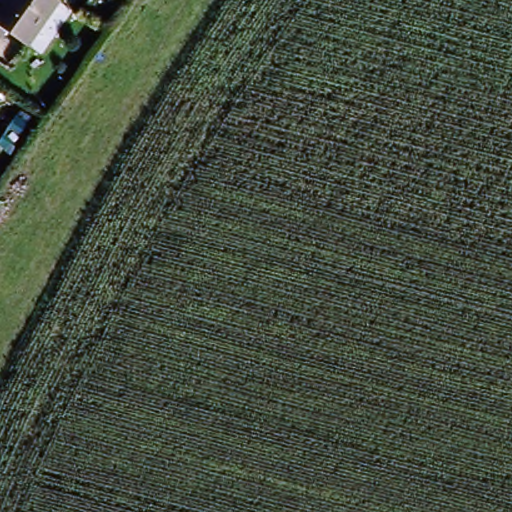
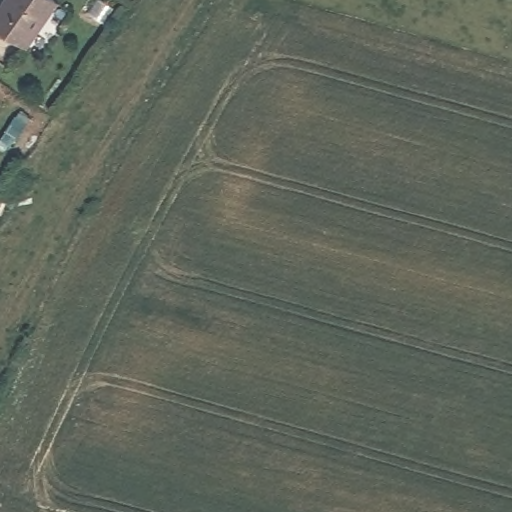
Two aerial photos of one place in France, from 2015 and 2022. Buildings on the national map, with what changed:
unchanged [(53,0),(27,38),(0,20),(0,10),(7,0),(53,0)]

